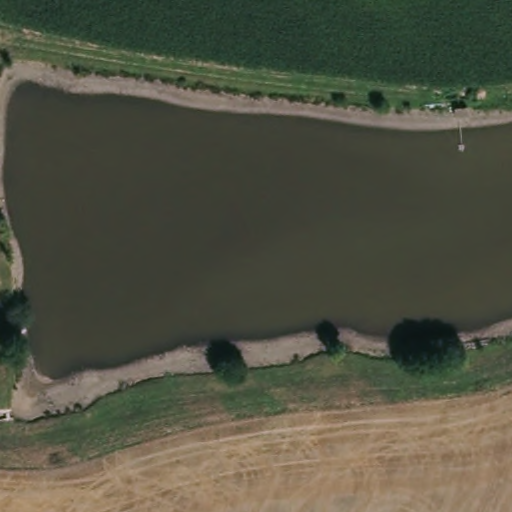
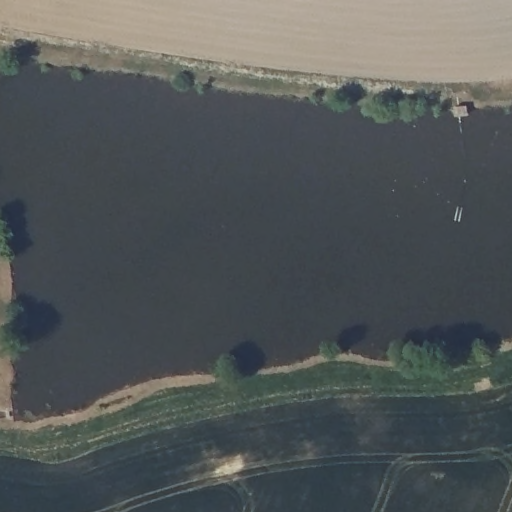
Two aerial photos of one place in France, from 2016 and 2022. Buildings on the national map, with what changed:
unchanged [(467,114),(456,115),(455,106),(467,106),(467,114)]

